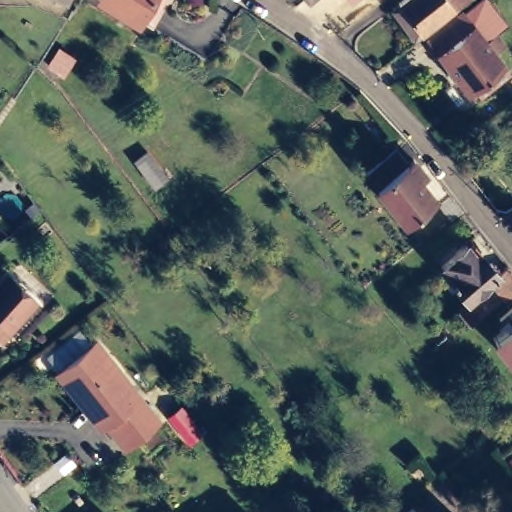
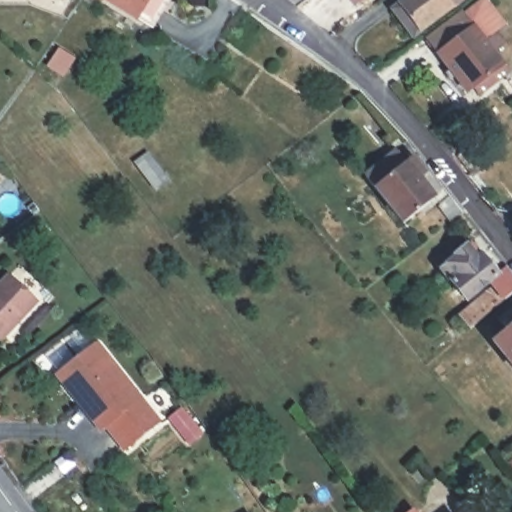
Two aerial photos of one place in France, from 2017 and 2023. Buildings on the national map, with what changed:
unchanged [(138,17),(136,21),(101,0),(166,0),(151,24),(138,17)]
unchanged [(347,0),(354,0),(349,4),(347,0)]
unchanged [(460,0),(419,30),(418,29),(413,31),(407,24),(411,20),(399,1),(401,0),(460,0)]
unchanged [(483,41),(461,13),(479,0),(490,0),(508,22),(492,34),(483,41)]
unchanged [(461,13),(483,41),(492,34),(499,45),(491,53),(501,66),(467,93),(454,76),(449,79),(445,73),(449,69),(427,38),(461,13)]
unchanged [(489,123),(502,140),(489,149),(477,131),(489,123)]
unchanged [(466,139),(478,157),(463,168),(451,150),(466,139)]
unchanged [(394,148),(406,162),(412,158),(421,169),(415,174),(432,195),(402,219),(364,173),(394,148)]
unchanged [(461,210),(451,218),(438,201),(448,194),(461,210)]
unchanged [(493,285),(489,280),(465,298),(440,267),(455,254),(454,253),(464,244),(474,257),(480,253),(493,269),(501,262),(512,275),(512,292),(469,328),(457,314),(493,285)]
unchanged [(0,334),(0,279),(9,269),(35,295),(18,314),(0,334)]
unchanged [(512,306),(512,324),(504,313),(512,306)]
unchanged [(512,356),(497,336),(512,324),(512,356)]
unchanged [(148,422),(125,442),(106,419),(102,422),(99,419),(93,409),(93,403),(85,394),(81,394),(79,394),(56,364),(58,362),(92,331),(120,368),(149,404),(156,414),(148,422)]
unchanged [(178,403),(196,427),(184,436),(166,412),(178,403)]
unchanged [(412,505),(417,512),(403,512),(412,505)]

